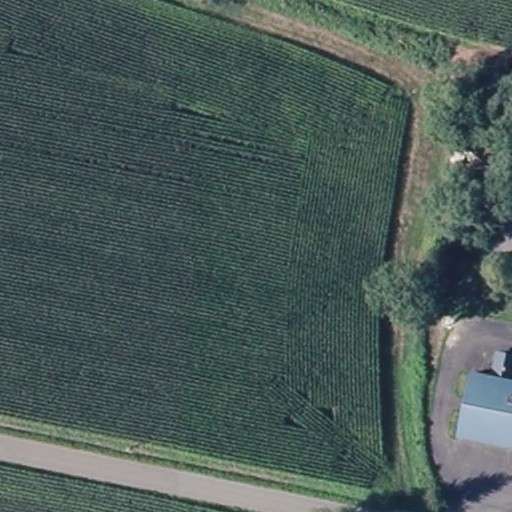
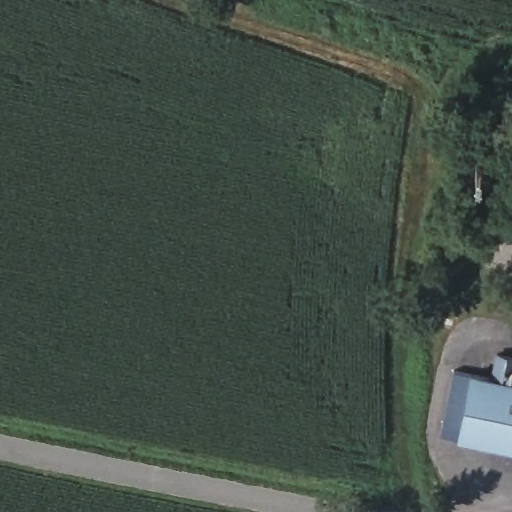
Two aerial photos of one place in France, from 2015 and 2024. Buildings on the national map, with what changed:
unchanged [(495,380),(500,355),(512,358),(512,450),(462,439),(476,375),(495,380)]

